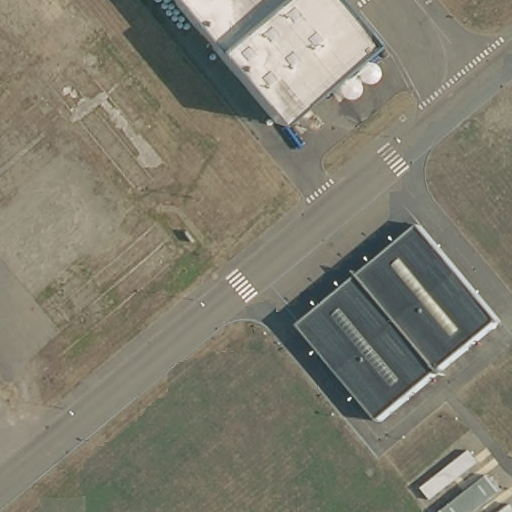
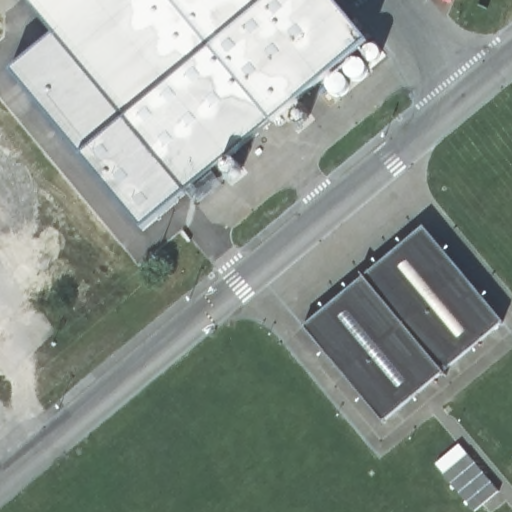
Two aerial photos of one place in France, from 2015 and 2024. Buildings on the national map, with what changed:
new [(187,191),(127,119),(29,0),(173,0),(216,49),(275,120),(187,191)]
unchanged [(275,120),(216,49),(173,0),(330,0),(364,44),(275,120)]
new [(127,119),(187,191),(143,230),(81,157),(9,69),(55,34),(127,119)]
unchanged [(425,226),(501,313),(382,420),(305,333),(425,226)]
new [(445,474),(468,454),(500,492),(476,512),(445,474)]

